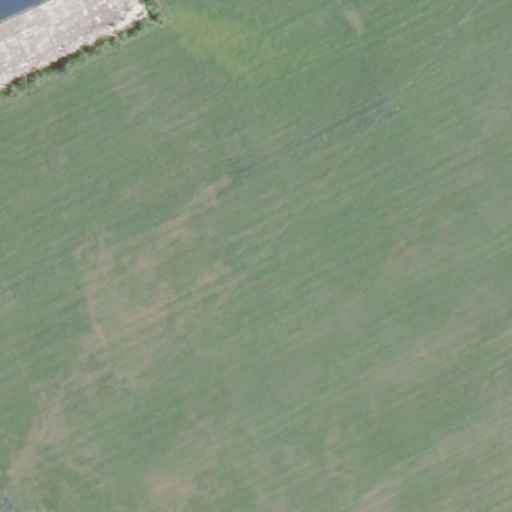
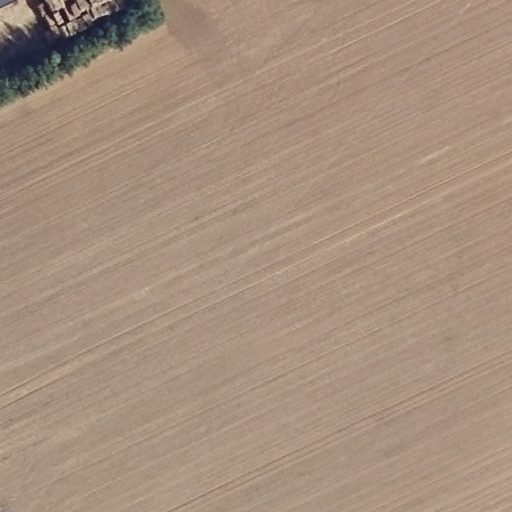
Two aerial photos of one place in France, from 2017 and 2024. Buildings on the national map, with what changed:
unchanged [(16,0),(0,7),(0,0),(16,0)]

